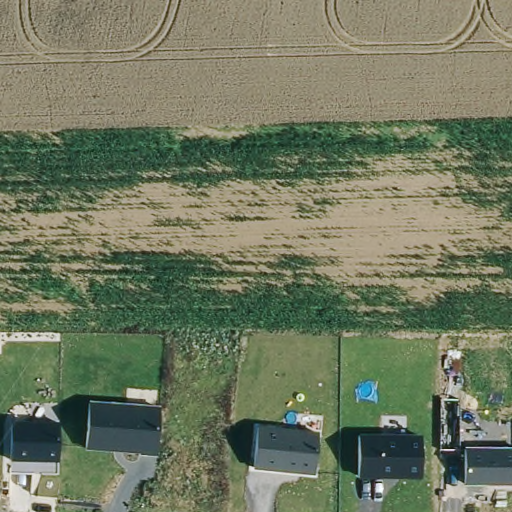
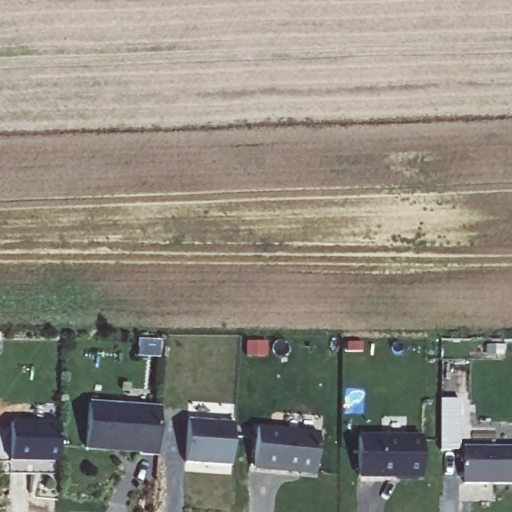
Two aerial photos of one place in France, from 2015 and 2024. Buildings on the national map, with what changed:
unchanged [(161,406),(158,455),(87,449),(90,401),(161,406)]
new [(190,418),(233,421),(232,465),(186,462),(190,418)]
unchanged [(60,461),(12,459),(13,420),(60,422),(60,461)]
unchanged [(317,431),(315,475),(255,470),(258,425),(317,431)]
unchanged [(422,435),(422,479),(359,478),(360,434),(422,435)]
unchanged [(512,485),(465,484),(465,447),(512,448),(512,485)]

